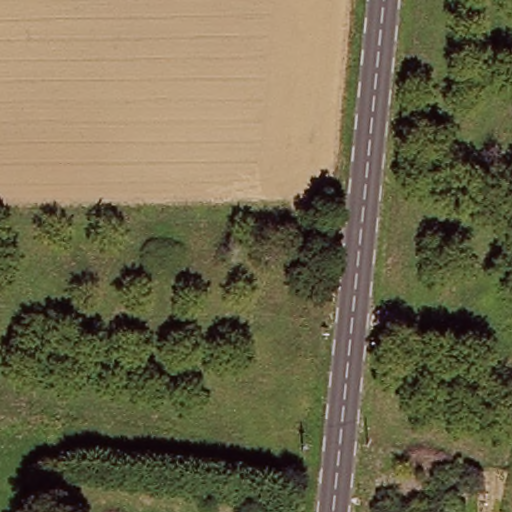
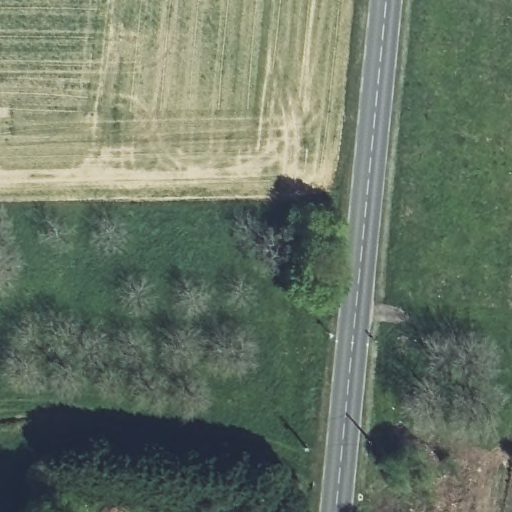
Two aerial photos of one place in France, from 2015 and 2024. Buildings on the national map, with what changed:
[]

